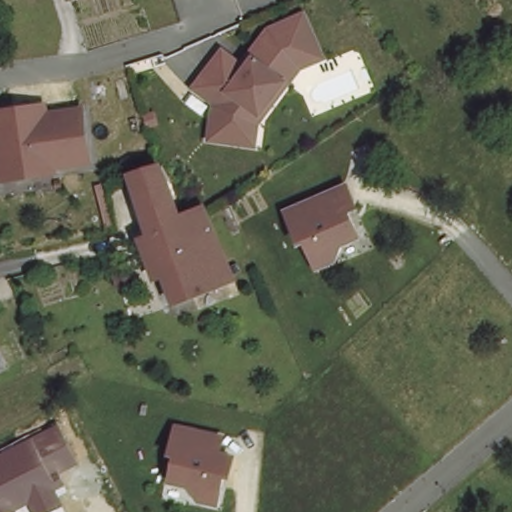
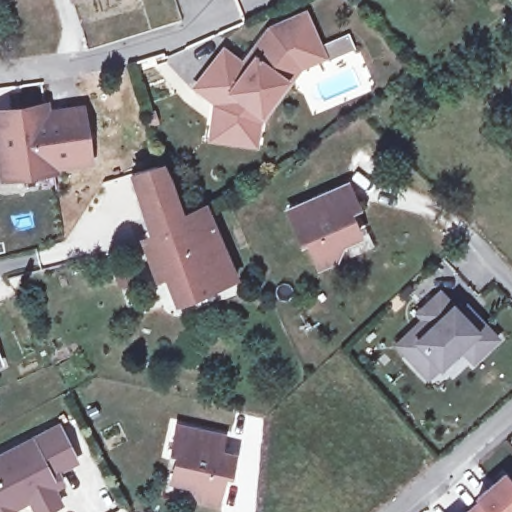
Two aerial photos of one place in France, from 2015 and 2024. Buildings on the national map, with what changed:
unchanged [(241,141),(216,138),(218,119),(222,102),(203,87),(231,51),(253,67),(260,59),(256,56),(274,32),(298,22),(310,16),(326,55),(304,65),(292,80),(265,115),(261,136),(261,143),(241,141)]
unchanged [(1,186),(0,175),(0,115),(41,102),(46,112),(81,116),(90,170),(1,186)]
unchanged [(228,285),(168,307),(145,249),(128,180),(161,172),(163,180),(173,221),(196,211),(201,222),(207,237),(221,268),(228,285)]
unchanged [(358,208),(351,211),(361,236),(343,246),(337,263),(319,272),(308,245),(301,247),(284,209),(348,182),(358,208)]
unchanged [(125,267),(130,282),(116,287),(111,271),(125,267)]
new [(459,312),(467,306),(497,338),(474,360),(461,346),(428,377),(397,345),(424,318),(418,313),(441,292),(459,312)]
unchanged [(225,433),(223,451),(236,453),(230,477),(225,477),(218,506),(198,502),(191,487),(168,483),(174,457),(169,457),(178,424),(225,433)]
unchanged [(59,475),(65,485),(54,491),(63,506),(51,512),(33,512),(28,503),(13,512),(0,512),(0,455),(58,425),(79,465),(59,475)]
new [(480,501),(478,497),(503,474),(512,484),(512,512),(468,512),(480,501)]

